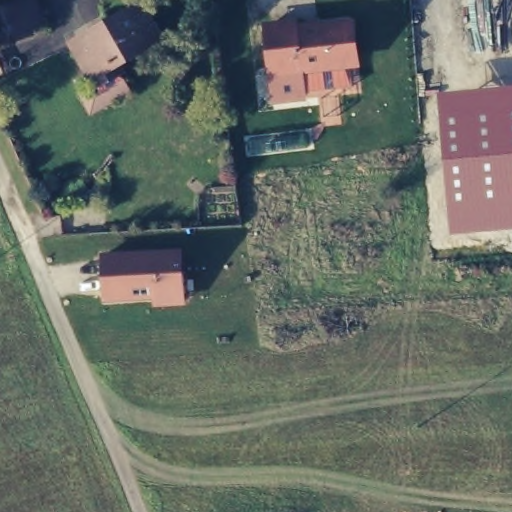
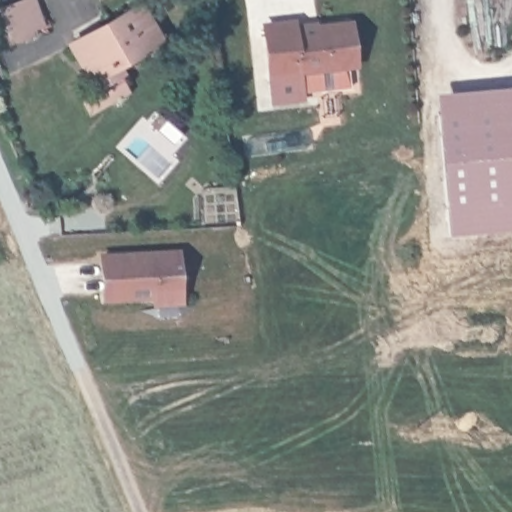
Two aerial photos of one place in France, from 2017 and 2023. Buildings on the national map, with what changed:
unchanged [(44,0),(45,27),(35,27),(34,33),(0,36),(0,3),(44,0)]
unchanged [(79,95),(93,86),(70,46),(137,7),(158,44),(115,68),(128,93),(115,101),(91,115),(79,95)]
unchanged [(270,92),(268,83),(259,35),(293,31),(295,36),(341,30),(350,73),(297,79),(300,89),(270,92)]
unchanged [(512,87),(512,229),(451,236),(437,94),(512,87)]
unchanged [(185,307),(155,307),(153,300),(100,302),(98,253),(182,250),(185,307)]

